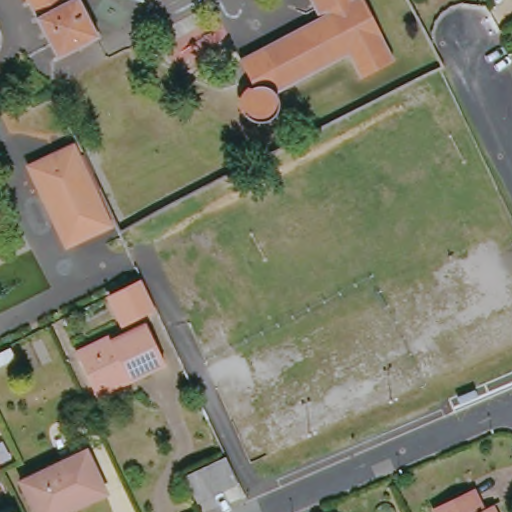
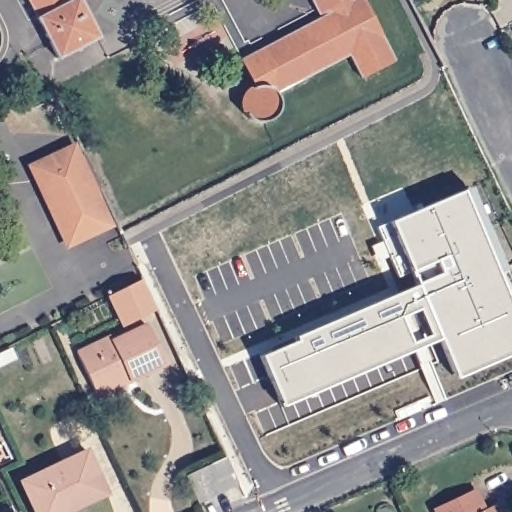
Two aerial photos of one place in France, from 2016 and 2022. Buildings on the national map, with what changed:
unchanged [(29,1),(28,0),(31,0),(29,1)]
unchanged [(29,1),(31,0),(75,0),(40,19),(29,1)]
unchanged [(60,59),(40,19),(75,0),(80,0),(100,37),(60,59)]
unchanged [(351,55),(277,94),(278,96),(280,101),(281,106),(281,111),(277,116),(275,119),(269,122),(264,124),(259,124),(255,122),(252,121),(250,119),(247,116),(246,113),(244,110),(244,103),(244,100),(245,96),(247,94),(249,91),(252,90),(252,89),(256,88),(242,60),(322,18),(313,0),(365,0),(397,60),(364,78),(351,55)]
unchanged [(69,242),(40,181),(34,169),(40,165),(72,150),(107,225),(69,242)]
new [(462,385),(440,346),(282,408),(260,360),(417,295),(389,227),(469,199),(512,309),(512,361),(462,385)]
unchanged [(147,280),(158,304),(161,310),(128,326),(114,296),(147,280)]
unchanged [(101,391),(82,352),(115,336),(118,341),(152,325),(170,365),(135,382),(104,397),(101,391)]
unchanged [(87,451),(107,495),(73,511),(72,512),(35,512),(22,483),(87,451)]
unchanged [(184,476),(199,470),(212,463),(226,457),(239,484),(225,490),(211,496),(197,503),(184,476)]
unchanged [(492,508),(494,512),(438,512),(437,509),(473,492),(484,511),(492,508)]

